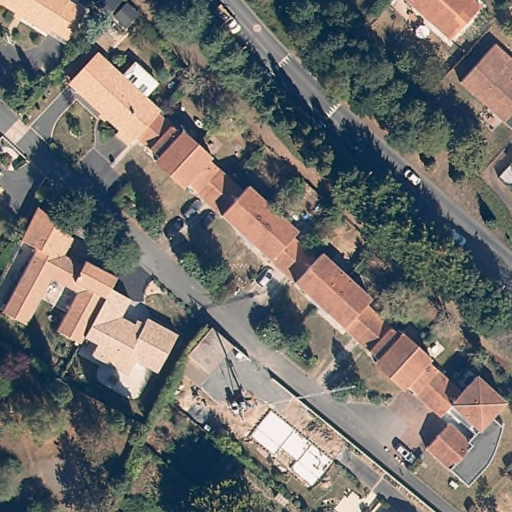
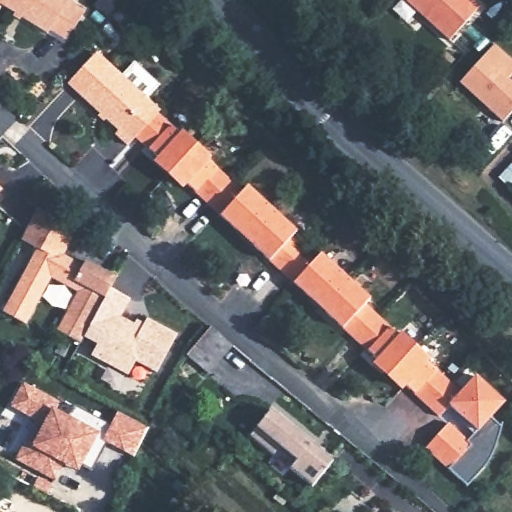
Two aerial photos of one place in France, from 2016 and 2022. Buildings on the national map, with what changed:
unchanged [(65,2),(82,12),(65,41),(48,30),(46,33),(0,5),(0,0),(66,0),(65,2)]
unchanged [(450,43),(403,0),(471,0),(480,9),(450,43)]
unchanged [(512,64),(512,75),(506,81),(512,86),(512,118),(504,127),(459,85),(493,47),(512,64)]
unchanged [(117,129),(80,95),(107,64),(157,110),(155,114),(132,138),(126,145),(113,133),(117,129)]
unchanged [(471,374),(499,399),(486,414),(499,426),(496,434),(492,444),(486,454),(465,483),(423,446),(445,421),(465,438),(473,428),(447,404),(438,415),(425,403),(405,385),(403,387),(373,361),(375,358),(352,337),(325,312),(327,309),(310,295),(308,297),(250,245),(253,243),(237,228),(234,230),(184,185),(182,187),(151,160),(154,157),(132,138),(155,114),(176,134),(180,131),(210,158),(207,161),(240,191),(245,186),(293,230),(289,235),(313,257),(317,253),(365,296),(361,301),(398,334),(400,332),(428,358),(426,360),(458,389),(471,374)]
unchanged [(73,234),(65,251),(116,274),(110,287),(104,298),(85,337),(81,343),(56,330),(75,292),(50,280),(26,327),(1,314),(34,250),(19,240),(31,212),(73,234)]
unchanged [(131,299),(121,317),(142,327),(146,318),(179,334),(159,374),(135,361),(129,375),(92,357),(99,343),(85,337),(104,298),(110,287),(131,299)]
unchanged [(210,371),(186,354),(203,321),(211,328),(231,343),(210,371)]
new [(23,444),(31,447),(44,423),(11,406),(24,381),(58,401),(52,409),(69,417),(74,406),(110,426),(117,412),(147,427),(132,456),(106,442),(93,470),(83,463),(78,472),(64,464),(55,480),(15,459),(23,444)]
unchanged [(332,461),(311,485),(290,472),(296,463),(280,449),(275,455),(250,436),(270,411),(332,461)]

